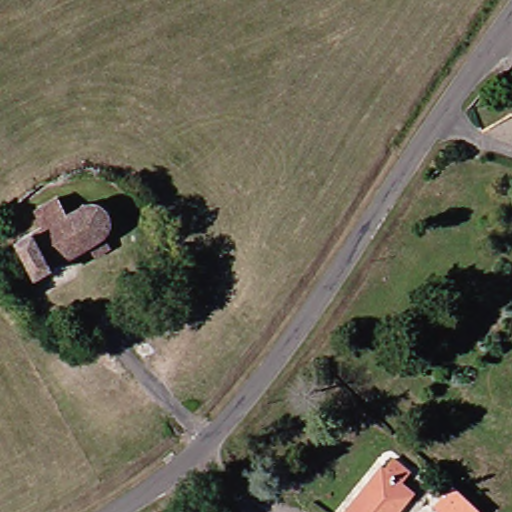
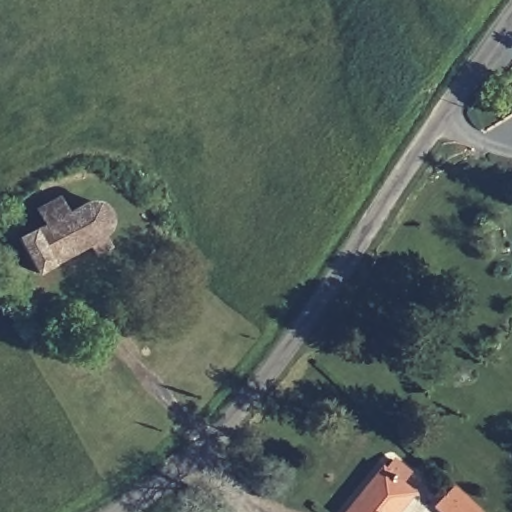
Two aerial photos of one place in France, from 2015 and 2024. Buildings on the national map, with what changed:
unchanged [(104,251),(86,262),(88,247),(47,267),(30,277),(13,244),(29,236),(42,228),(35,215),(53,201),(63,215),(85,205),(92,206),(97,205),(100,211),(105,216),(107,221),(108,228),(105,235),(101,238),(104,251)]
unchanged [(403,477),(394,487),(407,500),(396,512),(345,512),(387,463),(403,477)]
unchanged [(430,502),(441,489),(464,512),(425,512),(423,510),(430,502)]

